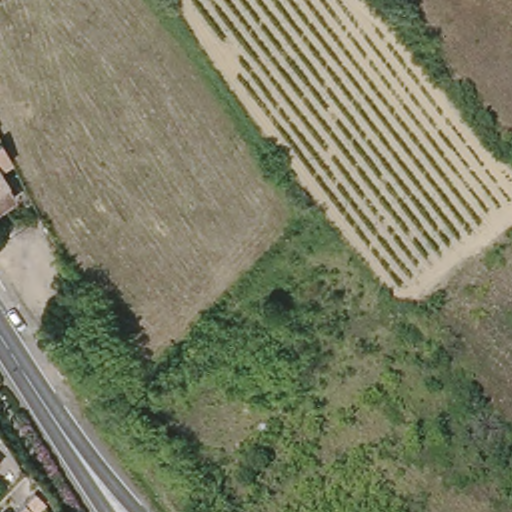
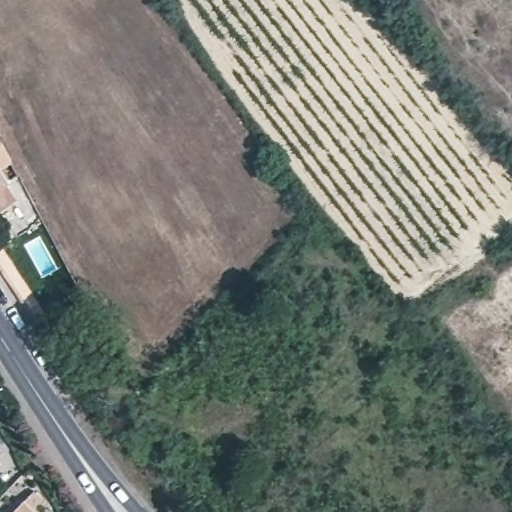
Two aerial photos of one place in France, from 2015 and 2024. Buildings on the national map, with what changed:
unchanged [(0,152),(0,137),(6,149),(0,152)]
unchanged [(16,167),(2,175),(17,201),(0,212),(0,152),(6,149),(16,167)]

